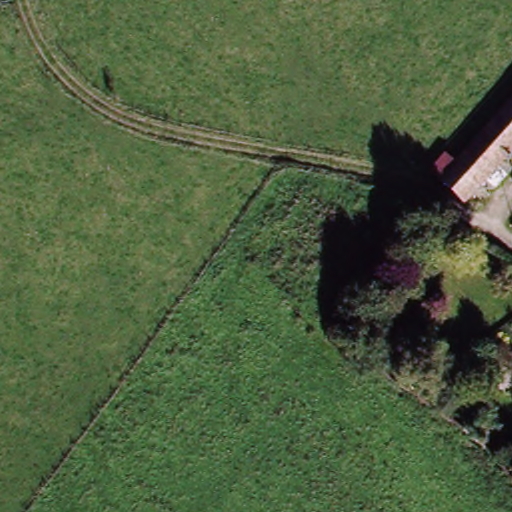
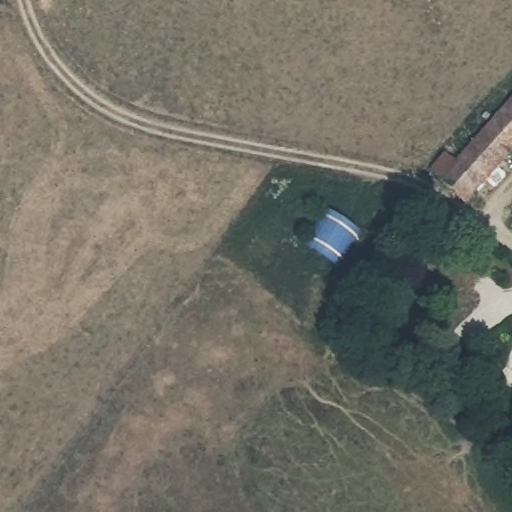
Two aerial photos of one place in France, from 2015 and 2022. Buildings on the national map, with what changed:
unchanged [(455,161),(466,171),(512,123),(512,168),(470,211),(451,190),(449,187),(439,177),(455,161)]

